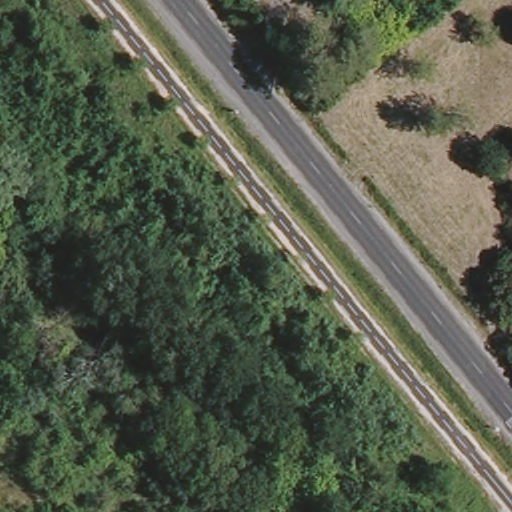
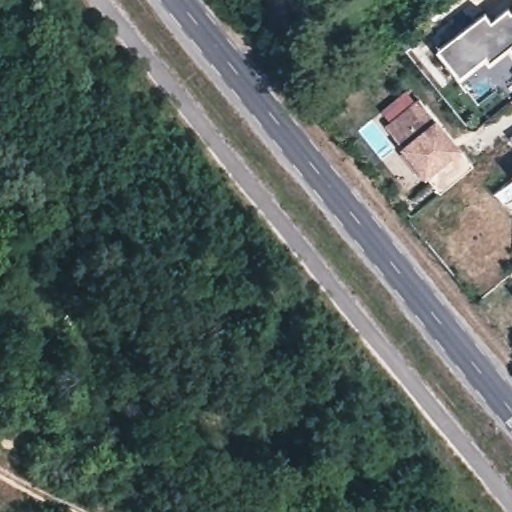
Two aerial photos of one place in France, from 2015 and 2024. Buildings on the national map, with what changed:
new [(494,20),(509,8),(512,12),(512,50),(510,48),(492,63),(487,59),(462,79),(436,49),(485,11),(494,20)]
new [(401,147),(385,125),(419,98),(436,117),(462,147),(476,166),(440,193),(425,177),(401,147)]

